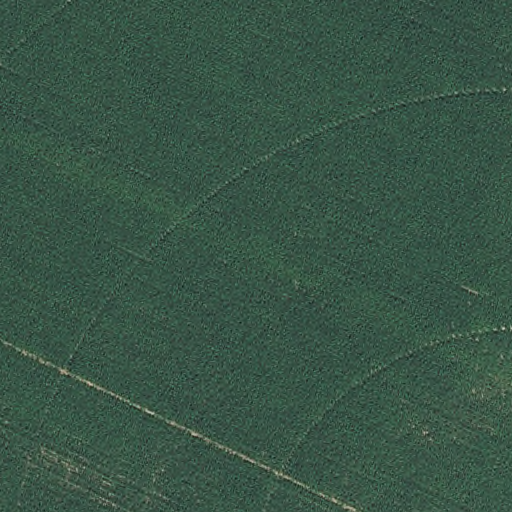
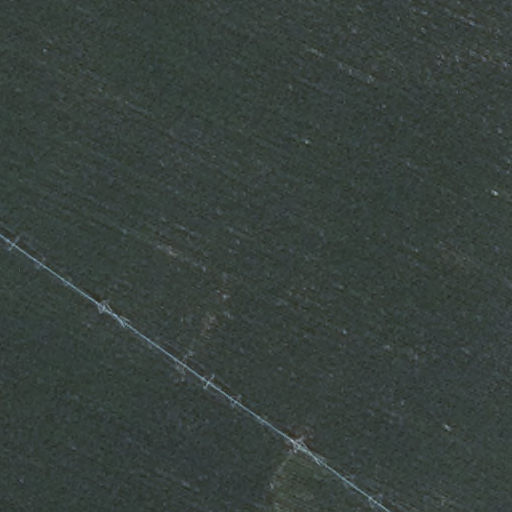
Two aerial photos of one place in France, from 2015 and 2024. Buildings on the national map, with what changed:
[]

